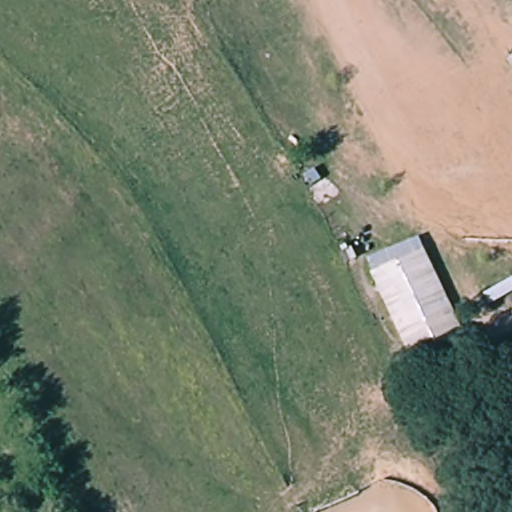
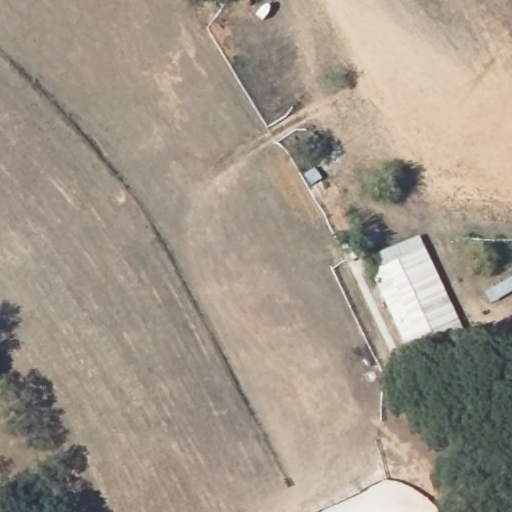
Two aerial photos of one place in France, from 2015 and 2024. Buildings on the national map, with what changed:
unchanged [(424,248),(462,331),(415,353),(376,270),(424,248)]

